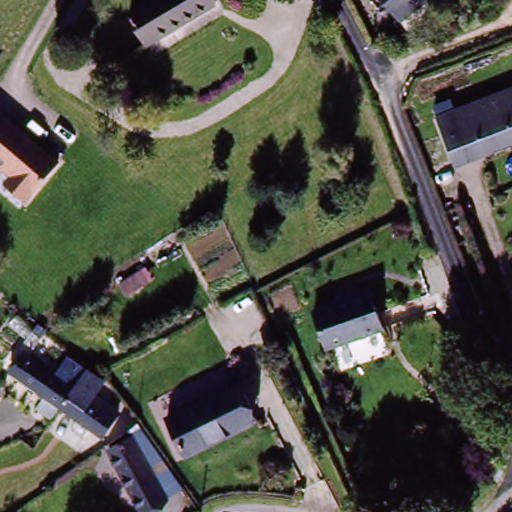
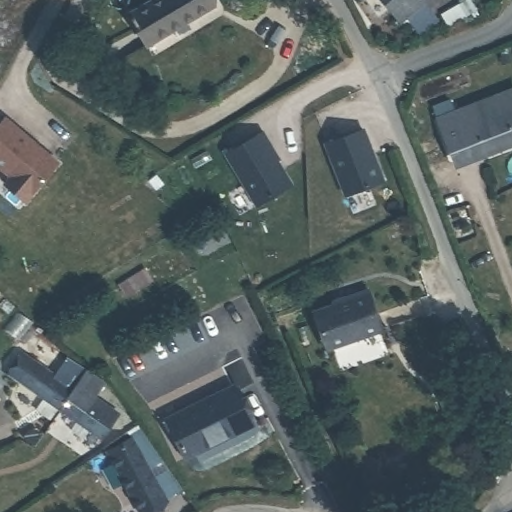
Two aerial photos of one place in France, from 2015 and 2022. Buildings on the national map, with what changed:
unchanged [(211,0),(216,9),(150,47),(129,14),(153,0),(211,0)]
unchanged [(402,22),(384,0),(425,0),(426,1),(402,22)]
unchanged [(437,118),(512,91),(512,131),(451,154),(437,118)]
unchanged [(20,208),(0,191),(0,182),(0,181),(0,180),(0,121),(2,119),(58,167),(20,208)]
new [(358,131),(380,182),(343,197),(321,146),(358,131)]
unchanged [(512,131),(512,150),(457,170),(451,154),(512,131)]
new [(257,133),(275,160),(272,162),(287,185),(253,207),(220,156),(257,133)]
unchanged [(132,277),(143,272),(150,282),(138,288),(125,296),(120,285),(132,277)]
unchanged [(387,327),(332,350),(317,313),(337,305),(336,303),(351,296),(371,288),(387,327)]
unchanged [(42,341),(52,347),(45,356),(35,350),(42,341)]
unchanged [(60,376),(65,369),(71,374),(78,365),(88,374),(103,386),(92,409),(115,425),(104,442),(67,417),(60,428),(52,423),(46,419),(53,408),(18,385),(35,360),(60,376)]
unchanged [(228,390),(249,425),(187,459),(167,425),(228,390)]
unchanged [(468,391),(477,415),(450,427),(439,403),(468,391)]
unchanged [(94,451),(119,436),(132,429),(162,481),(150,490),(127,505),(94,451)]

